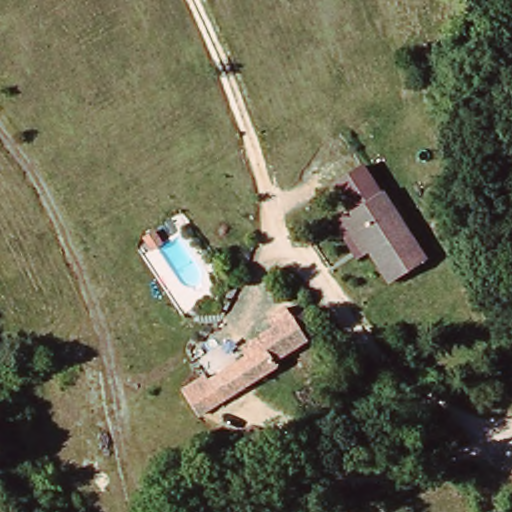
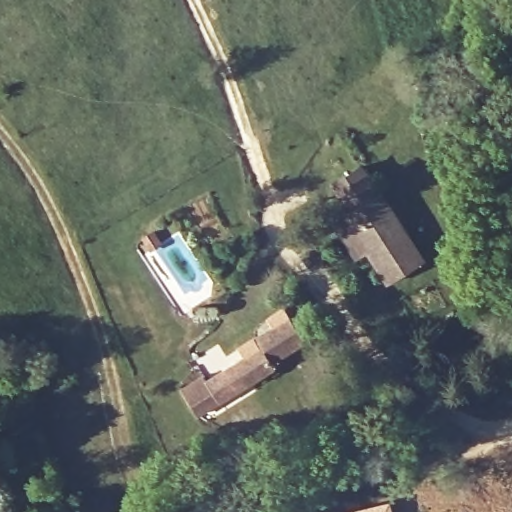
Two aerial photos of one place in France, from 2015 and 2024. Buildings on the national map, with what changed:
unchanged [(337,219),(350,211),(356,208),(341,184),(366,165),(382,191),(385,191),(429,260),(394,280),(372,247),(361,256),(337,219)]
unchanged [(159,237),(165,249),(154,255),(147,244),(159,237)]
unchanged [(275,360),(197,407),(180,383),(203,370),(207,373),(244,350),(238,341),(254,330),(272,319),(267,311),(283,301),(289,308),(304,333),(272,355),(275,360)]
new [(390,512),(347,512),(387,501),(390,512)]

